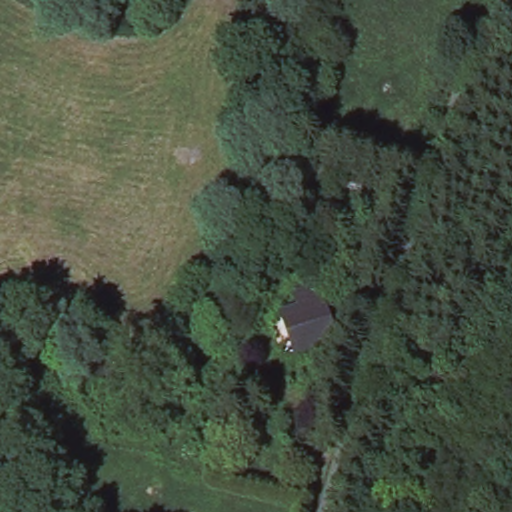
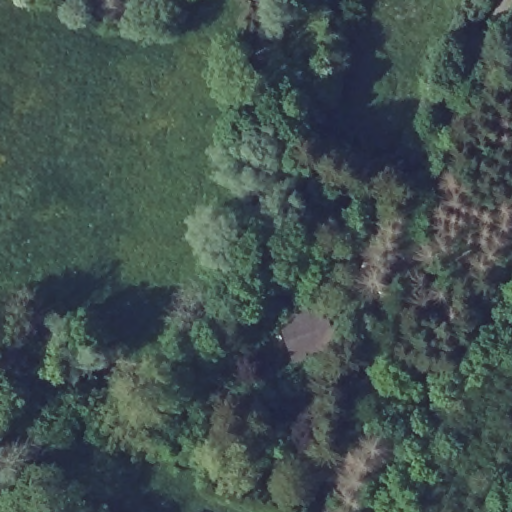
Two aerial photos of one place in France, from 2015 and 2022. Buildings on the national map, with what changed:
unchanged [(304,312),(299,297),(321,290),(339,345),(300,358),(287,318),(304,312)]

